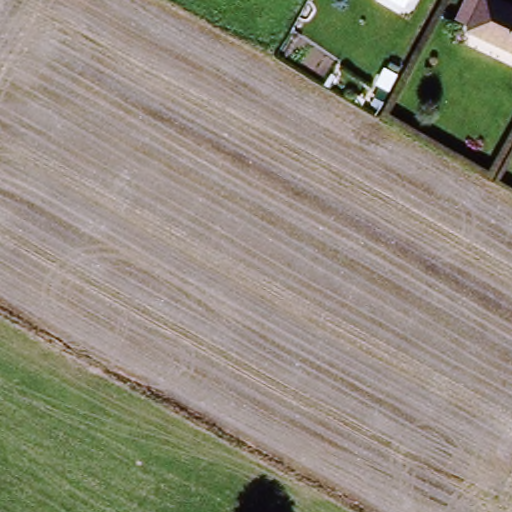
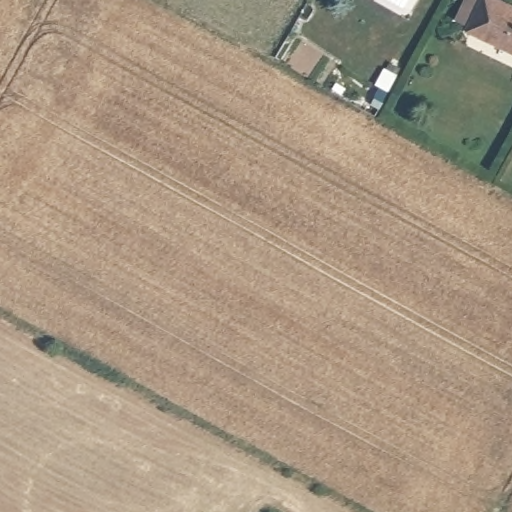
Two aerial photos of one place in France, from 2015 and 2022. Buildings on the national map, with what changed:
unchanged [(380,0),(407,0),(401,12),(380,0)]
unchanged [(468,29),(485,0),(494,0),(512,11),(512,55),(468,29)]

